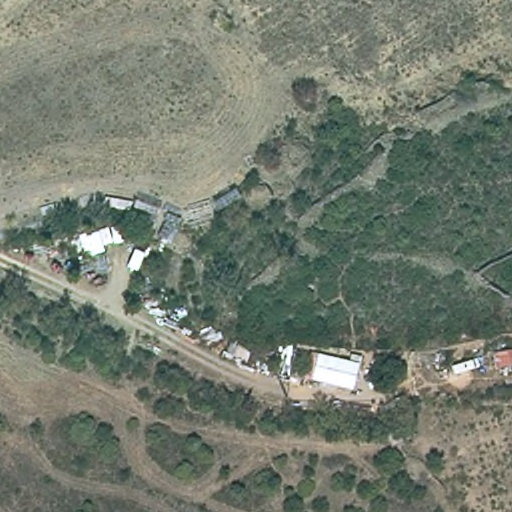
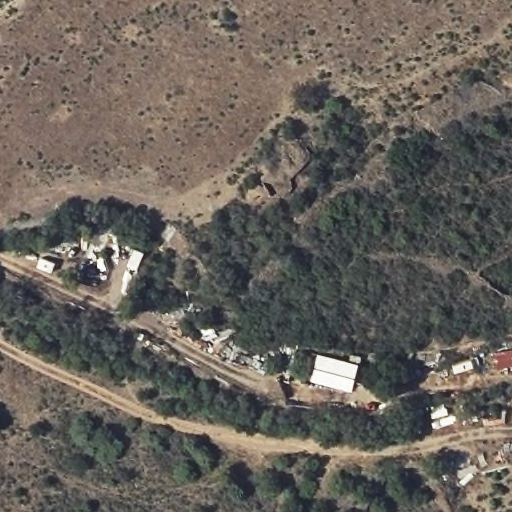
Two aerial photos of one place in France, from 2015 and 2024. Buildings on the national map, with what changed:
unchanged [(512,346),(512,365),(494,368),(491,350),(512,346)]
unchanged [(306,379),(312,353),(349,362),(351,354),(361,357),(352,390),(306,379)]

